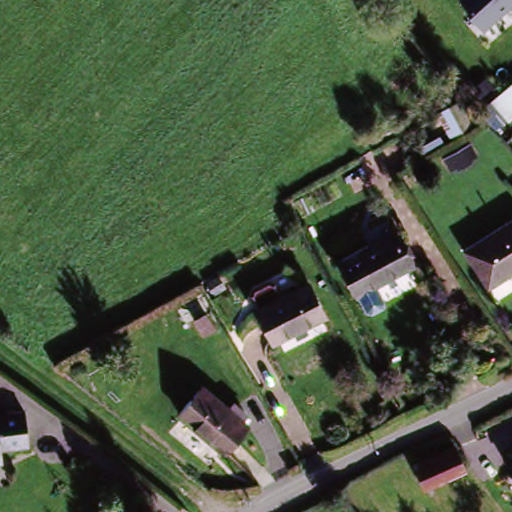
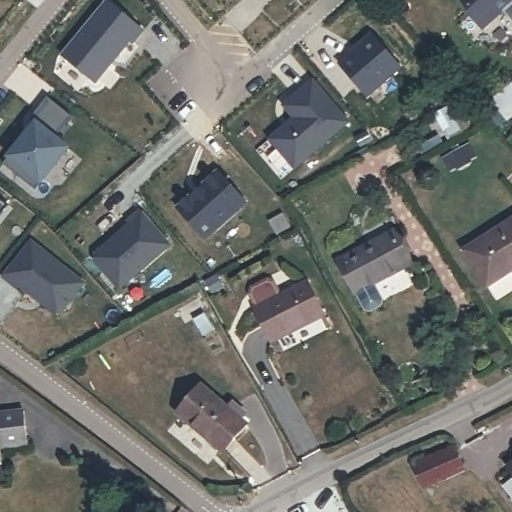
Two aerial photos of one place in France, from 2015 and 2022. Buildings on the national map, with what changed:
new [(110,0),(145,29),(135,42),(132,40),(99,82),(65,55),(109,0),(110,0)]
unchanged [(456,0),(512,0),(512,7),(484,31),(456,0)]
new [(297,116),(286,104),(314,78),(351,119),(302,163),(295,163),(273,138),(297,116)]
new [(37,124),(32,119),(50,97),(73,116),(57,138),(70,148),(38,190),(5,165),(37,124)]
new [(249,200),(205,239),(177,206),(218,167),(249,200)]
new [(171,243),(120,289),(93,260),(95,252),(129,222),(126,219),(140,207),(171,243)]
unchanged [(463,250),(512,222),(512,271),(486,286),(463,250)]
unchanged [(408,256),(354,286),(338,255),(392,228),(408,256)]
new [(86,282),(63,313),(52,311),(20,287),(17,290),(2,276),(31,239),(86,282)]
unchanged [(255,307),(257,306),(250,292),(252,285),(267,278),(273,280),(280,293),(308,279),(325,310),(272,338),(255,307)]
unchanged [(225,458),(172,419),(192,390),(246,430),(225,458)]
unchanged [(25,409),(30,441),(2,446),(5,459),(0,460),(0,413),(25,409)]
unchanged [(430,493),(412,470),(452,440),(470,463),(430,493)]
unchanged [(512,455),(512,480),(500,464),(512,455)]

